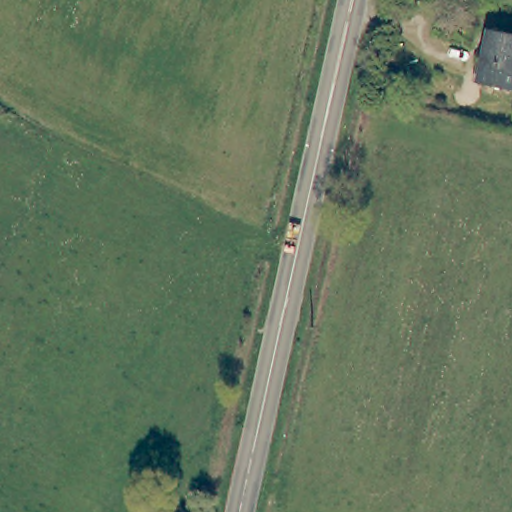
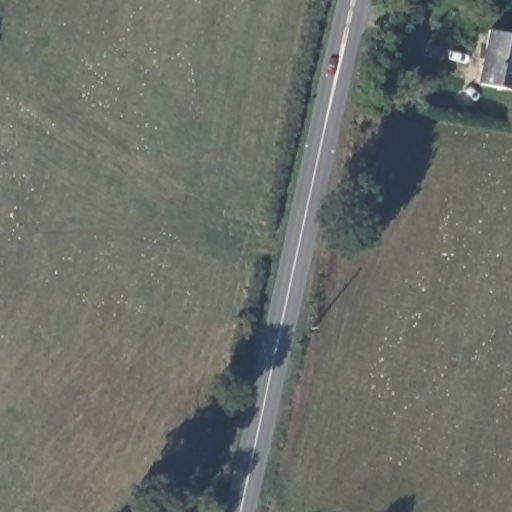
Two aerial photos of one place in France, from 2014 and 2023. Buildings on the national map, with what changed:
unchanged [(480,80),(492,26),(512,31),(512,88),(480,80)]

